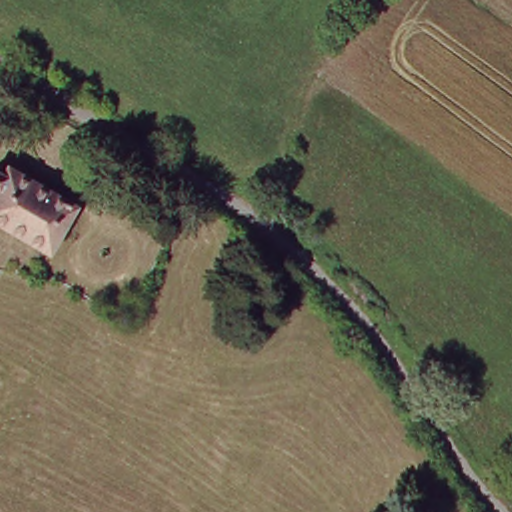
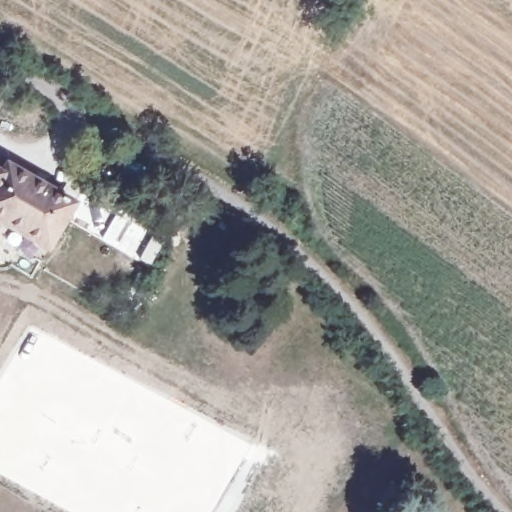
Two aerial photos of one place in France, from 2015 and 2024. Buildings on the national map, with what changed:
unchanged [(8,168),(76,210),(50,252),(0,224),(0,178),(1,179),(8,168)]

